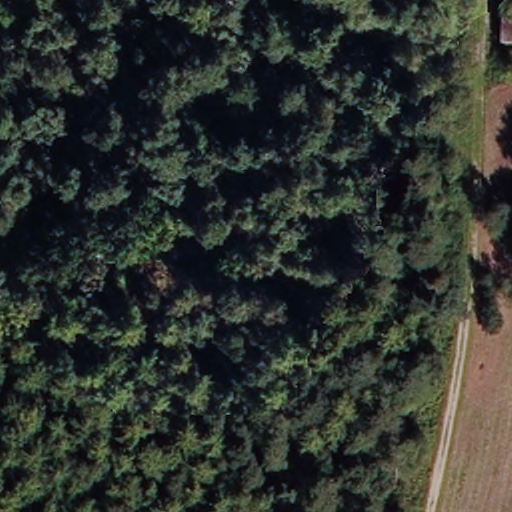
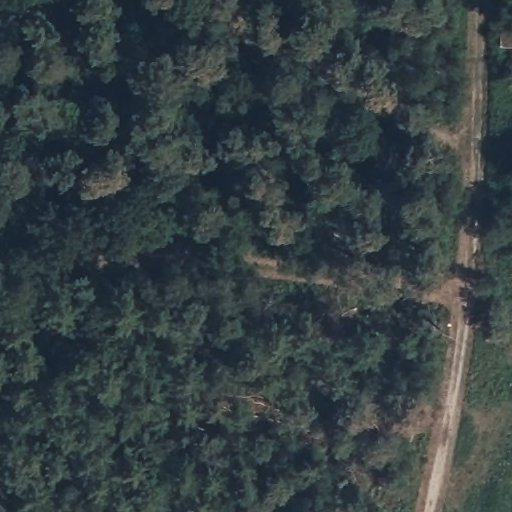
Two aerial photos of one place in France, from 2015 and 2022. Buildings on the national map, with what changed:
unchanged [(502,48),(502,26),(512,26),(512,48),(502,48)]

